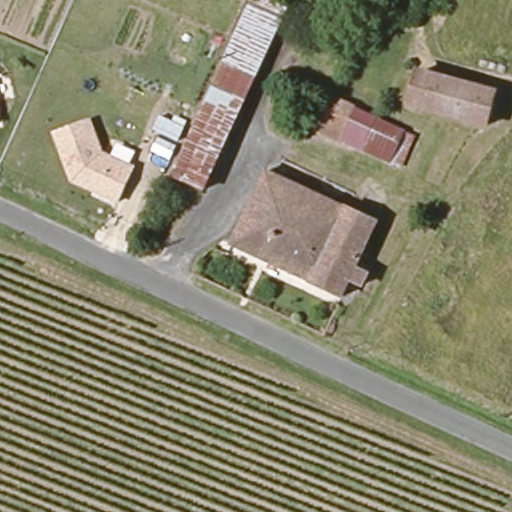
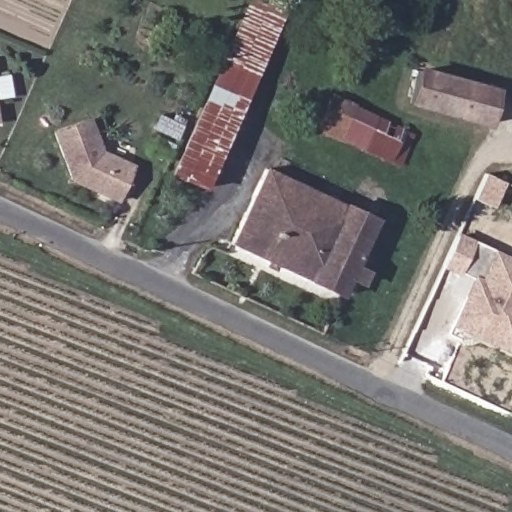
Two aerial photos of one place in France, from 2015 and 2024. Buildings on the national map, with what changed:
unchanged [(206,188),(175,174),(254,0),(268,0),(288,9),(206,188)]
unchanged [(500,90),(490,124),(414,104),(423,69),(500,90)]
unchanged [(314,128),(330,96),(341,101),(376,117),(361,149),(314,128)]
unchanged [(102,151),(134,165),(116,203),(70,182),(50,131),(90,117),(102,151)]
unchanged [(414,134),(399,166),(386,160),(361,149),(376,117),(393,125),(414,134)]
unchanged [(272,170),(378,220),(356,266),(371,273),(366,284),(352,278),(344,294),(237,242),(272,170)]
new [(471,298),(479,281),(464,274),(447,266),(460,236),(478,245),(499,255),(512,261),(512,350),(495,342),(479,335),(458,325),(471,298)]

